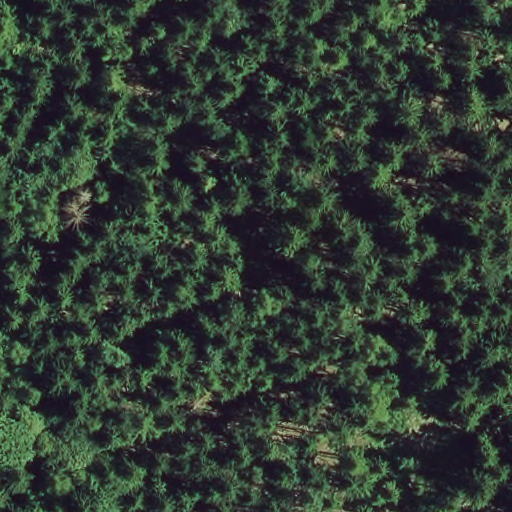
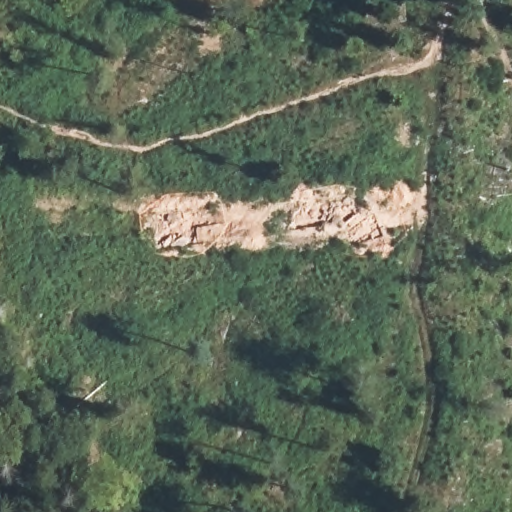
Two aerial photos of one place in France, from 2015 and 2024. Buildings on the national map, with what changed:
[]

